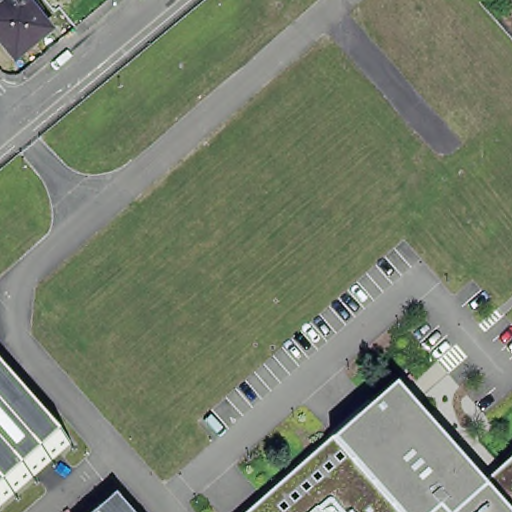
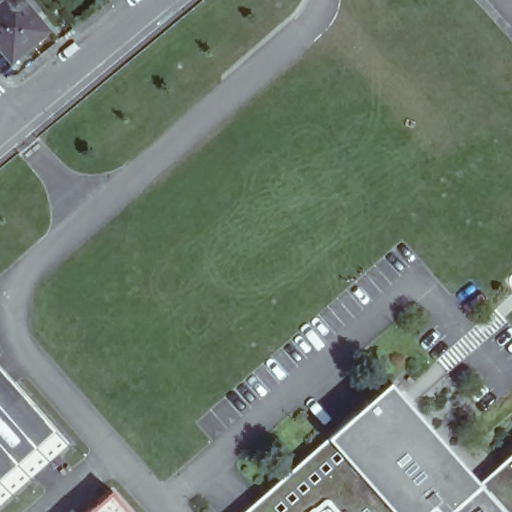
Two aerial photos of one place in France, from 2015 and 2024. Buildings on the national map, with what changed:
unchanged [(0,46),(0,0),(24,0),(48,29),(12,60),(0,46)]
unchanged [(58,433),(0,485),(0,367),(58,433)]
unchanged [(391,381),(482,482),(512,455),(512,512),(242,512),(329,438),(391,381)]
unchanged [(112,492),(130,512),(90,512),(112,492)]

